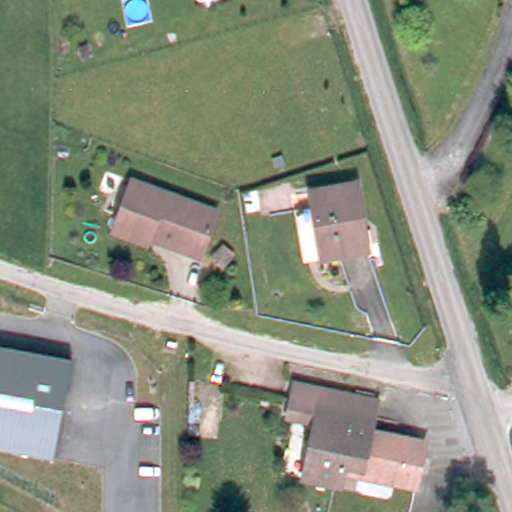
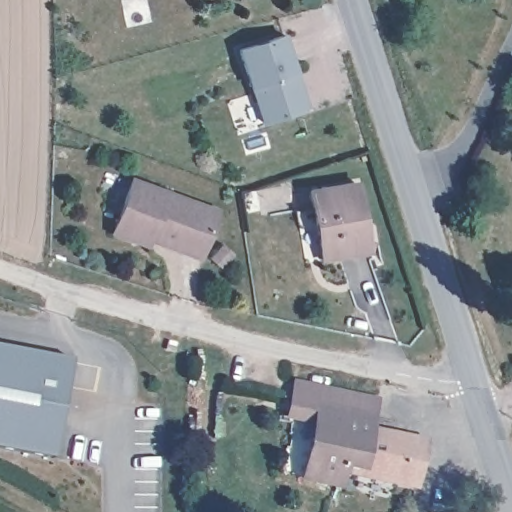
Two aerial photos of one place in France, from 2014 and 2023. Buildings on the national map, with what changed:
new [(237,49),(285,33),(297,74),(307,106),(305,111),(264,124),(252,90),(237,49)]
unchanged [(309,267),(292,215),(314,209),(307,191),(358,174),(380,241),(309,267)]
unchanged [(150,241),(147,249),(115,239),(124,206),(132,180),(152,186),(219,207),(205,261),(182,255),(183,251),(150,241)]
unchanged [(170,341),(172,342),(178,343),(175,352),(172,351),(167,349),(170,341)]
unchanged [(0,450),(0,346),(72,359),(54,461),(0,450)]
unchanged [(300,482),(312,426),(285,421),(292,385),(343,394),(374,399),(370,417),(367,433),(421,444),(412,487),(357,478),(359,473),(342,470),(338,491),(300,482)]

